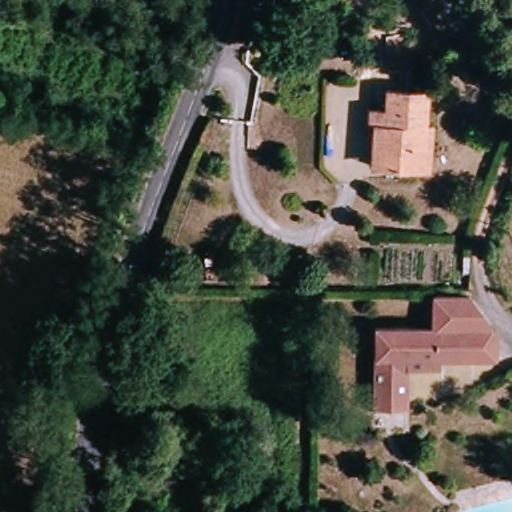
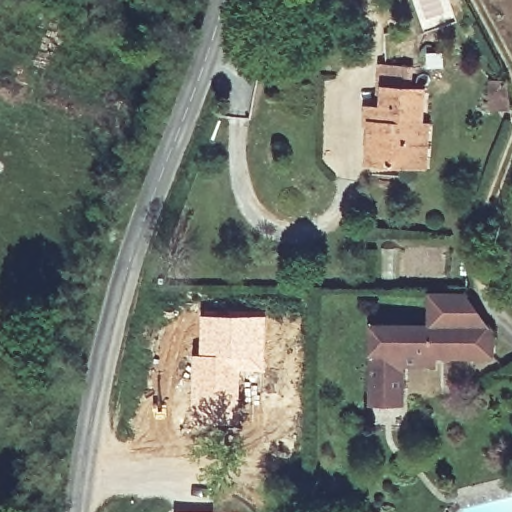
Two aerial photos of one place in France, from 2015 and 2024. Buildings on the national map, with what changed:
unchanged [(512,89),(512,106),(493,106),(496,77),(509,77),(512,89)]
unchanged [(433,176),(414,175),(372,174),(372,139),(373,118),(388,118),(389,105),(424,106),(423,136),(432,137),(433,176)]
unchanged [(492,330),(492,331),(432,330),(432,298),(471,299),(492,330)]
new [(195,352),(200,352),(202,313),(267,314),(265,372),(242,371),(242,424),(194,425),(195,352)]
unchanged [(496,337),(496,362),(441,362),(439,370),(407,369),(406,410),(372,410),(373,329),(432,330),(492,331),(496,337)]
new [(177,511),(195,512),(176,512),(177,511)]

